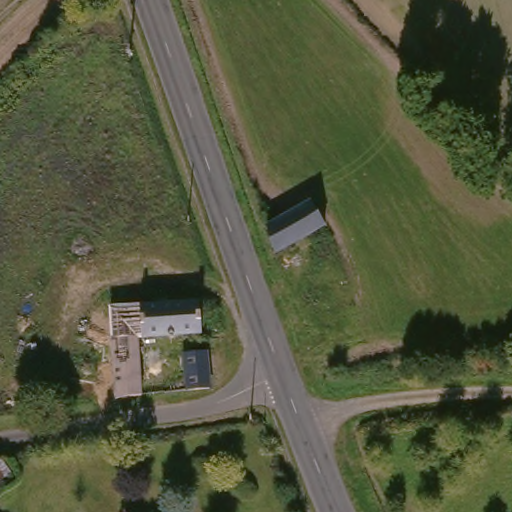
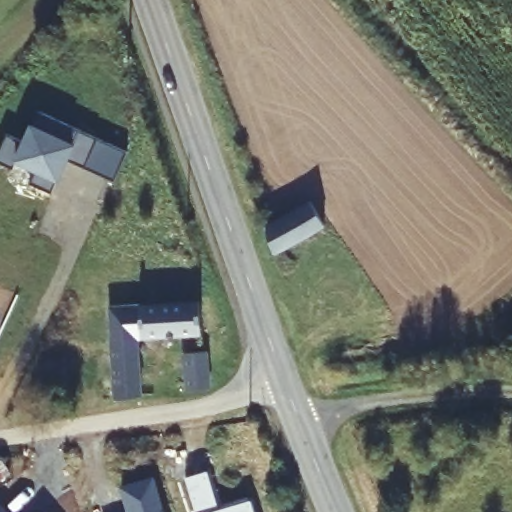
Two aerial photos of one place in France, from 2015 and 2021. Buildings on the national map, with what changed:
new [(24,143),(38,112),(98,140),(84,170),(66,161),(51,195),(28,184),(36,170),(16,161),(13,170),(0,164),(0,148),(6,135),(24,143)]
new [(98,140),(128,153),(113,182),(84,170),(98,140)]
unchanged [(313,197),(328,224),(281,250),(269,222),(313,197)]
unchanged [(206,305),(209,336),(142,340),(146,397),(135,398),(127,397),(114,400),(108,310),(206,305)]
unchanged [(186,352),(209,350),(212,386),(188,388),(186,352)]

